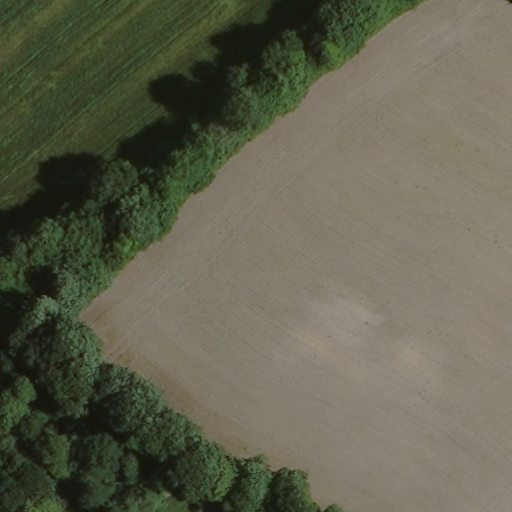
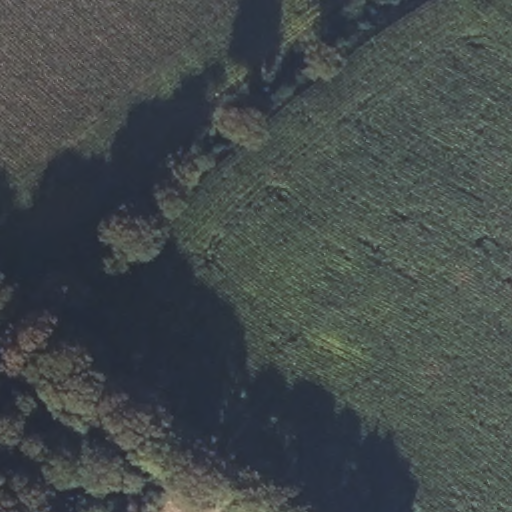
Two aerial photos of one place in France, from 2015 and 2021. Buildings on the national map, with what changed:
[]

